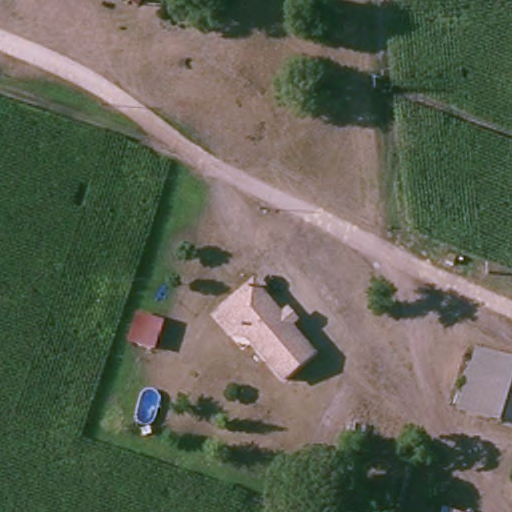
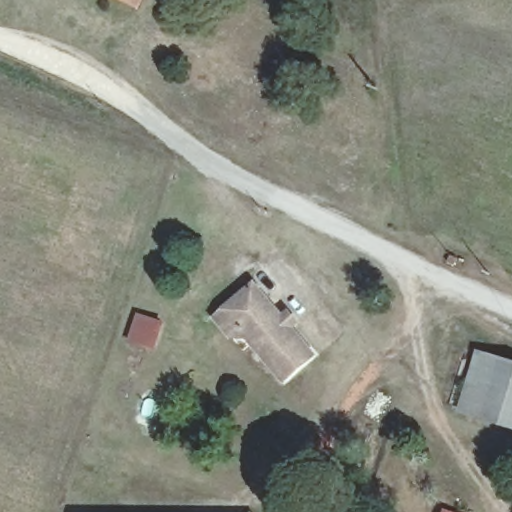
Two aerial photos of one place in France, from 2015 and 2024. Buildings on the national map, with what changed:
unchanged [(119,0),(146,0),(142,9),(119,0)]
unchanged [(285,386),(244,338),(233,349),(212,317),(255,281),(280,312),(288,306),(303,325),(296,331),(316,354),(285,386)]
unchanged [(156,356),(128,347),(137,314),(164,324),(156,356)]
unchanged [(469,414),(482,360),(512,368),(512,425),(469,414)]
unchanged [(454,512),(438,512),(440,506),(454,512)]

